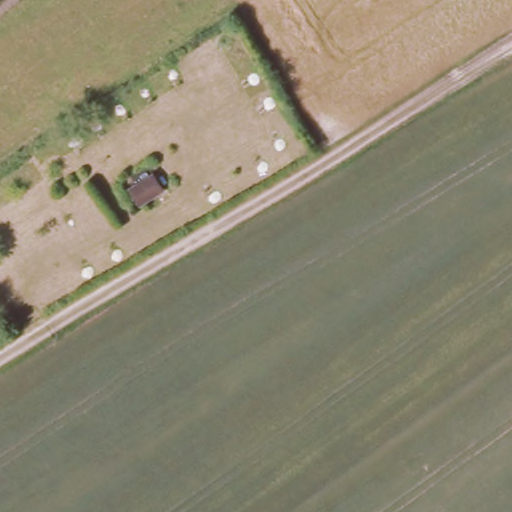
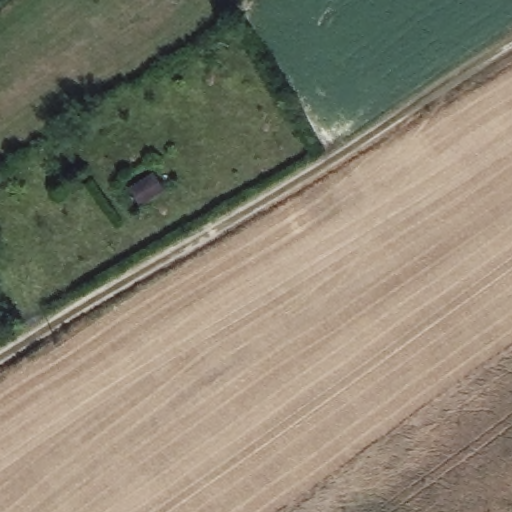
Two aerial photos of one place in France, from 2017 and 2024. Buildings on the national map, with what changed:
unchanged [(128,190),(153,174),(166,189),(137,207),(128,190)]

